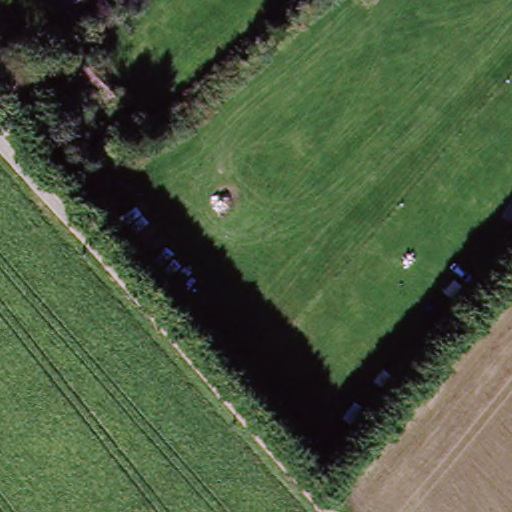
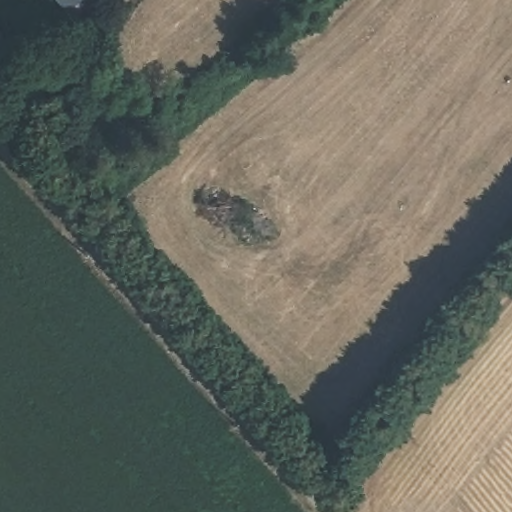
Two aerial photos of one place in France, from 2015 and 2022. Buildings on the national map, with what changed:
unchanged [(70,19),(53,0),(90,0),(70,19)]
unchanged [(104,85),(124,109),(104,125),(86,104),(93,98),(59,58),(76,44),(109,82),(104,85)]

